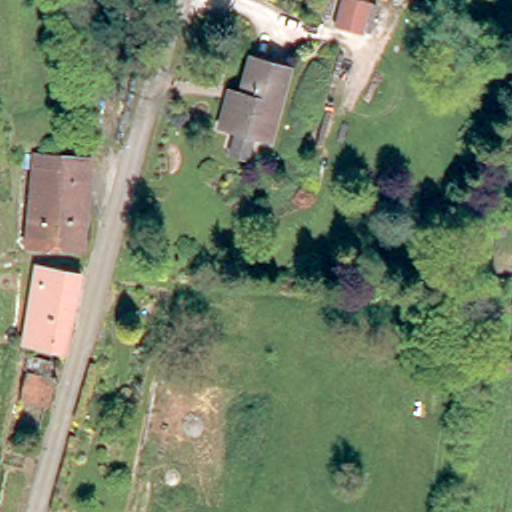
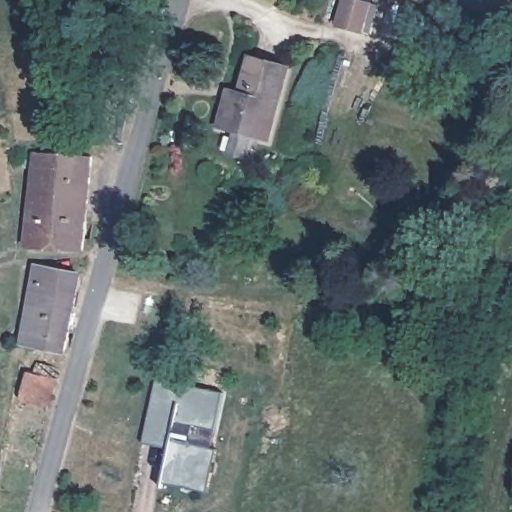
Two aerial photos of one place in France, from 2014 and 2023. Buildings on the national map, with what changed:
new [(370,34),(362,32),(338,26),(344,0),(357,0),(370,3),(377,5),(370,34)]
unchanged [(287,67),(268,141),(220,127),(226,99),(230,90),(240,92),(250,56),(287,67)]
unchanged [(35,153),(65,155),(55,249),(27,247),(35,153)]
unchanged [(55,249),(65,155),(93,156),(83,250),(55,249)]
unchanged [(65,351),(23,343),(37,267),(80,275),(65,351)]
unchanged [(47,407),(20,400),(27,370),(56,378),(47,407)]
new [(207,494),(162,485),(161,489),(159,488),(167,450),(141,445),(143,435),(155,380),(223,394),(215,432),(192,427),(188,445),(211,449),(216,450),(207,494)]

